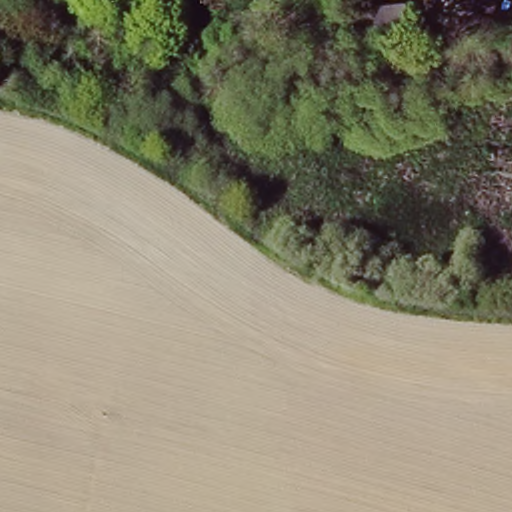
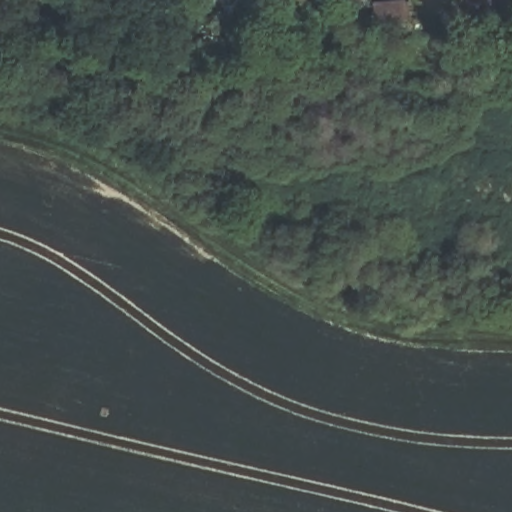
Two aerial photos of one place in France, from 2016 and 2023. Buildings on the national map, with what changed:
unchanged [(477,0),(488,0),(487,4),(477,0)]

